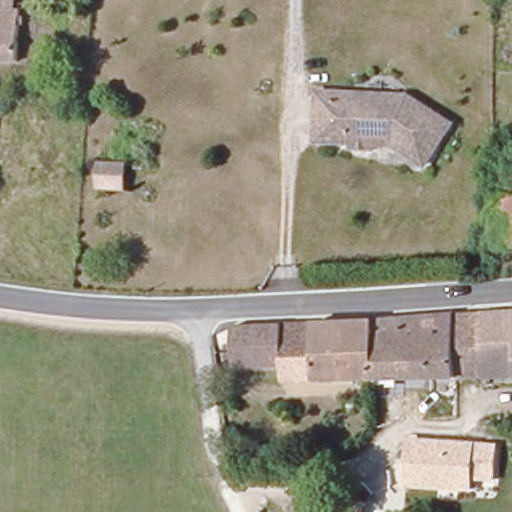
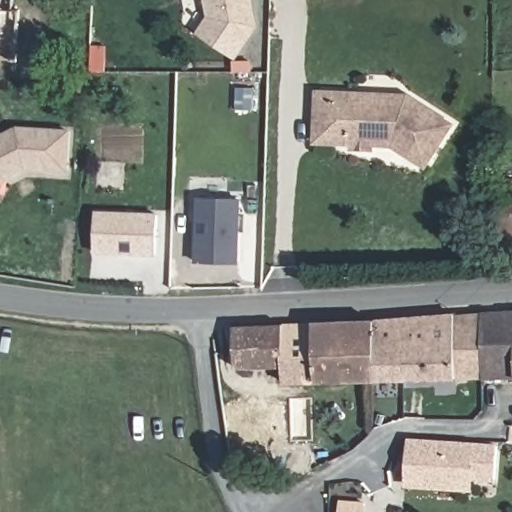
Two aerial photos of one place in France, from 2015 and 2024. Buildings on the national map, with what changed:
unchanged [(14,12),(10,64),(0,63),(0,0),(7,0),(7,11),(14,12)]
new [(207,0),(250,0),(254,29),(230,59),(197,33),(210,16),(207,0)]
unchanged [(451,121),(432,155),(412,155),(391,143),(373,143),(373,149),(347,149),(348,142),(330,141),(314,141),(313,93),(331,93),(407,94),(451,121)]
new [(6,134),(17,129),(69,131),(67,169),(24,167),(7,175),(0,187),(0,137),(6,134)]
unchanged [(124,189),(95,188),(97,158),(125,160),(124,189)]
unchanged [(495,199),(496,181),(512,181),(512,199),(512,250),(495,249),(495,199)]
new [(197,198),(240,199),(237,263),(196,262),(197,198)]
new [(96,210),(158,214),(156,254),(94,250),(96,210)]
unchanged [(480,316),(512,314),(512,380),(481,381),(480,316)]
unchanged [(481,381),(455,382),(453,318),(480,316),(481,381)]
unchanged [(373,323),(453,318),(455,382),(374,384),(373,323)]
unchanged [(281,386),(281,369),(235,371),(232,330),(373,323),(374,384),(281,386)]
unchanged [(407,489),(409,444),(472,447),(496,448),(495,469),(470,469),(468,492),(407,489)]
unchanged [(339,499),(364,500),(364,512),(338,512),(339,499)]

